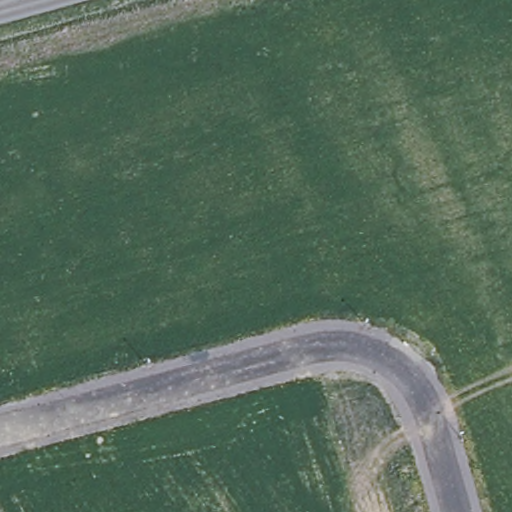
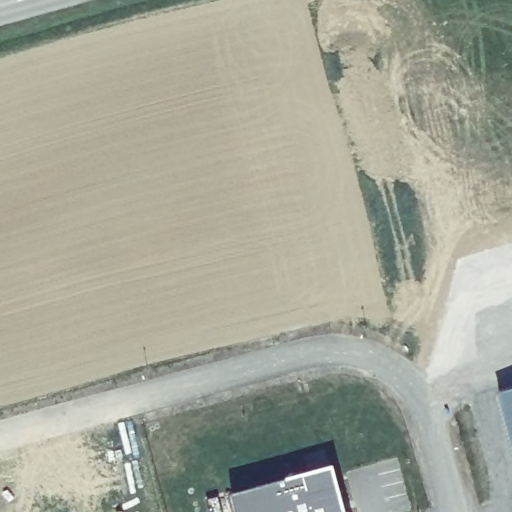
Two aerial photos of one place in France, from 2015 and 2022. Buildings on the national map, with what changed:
new [(512,385),(512,441),(497,389),(512,385)]
new [(327,463),(334,460),(341,487),(347,510),(347,512),(236,512),(230,487),(327,463)]

